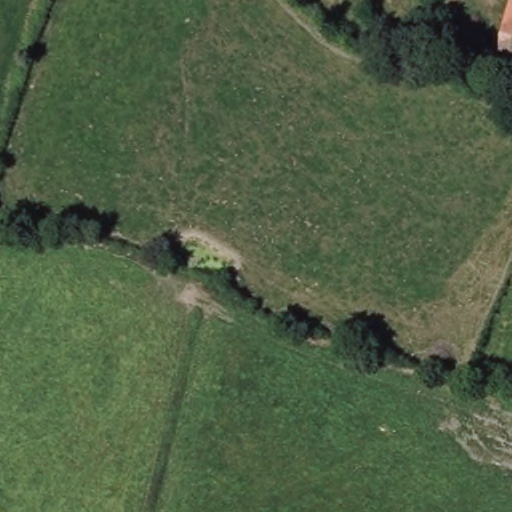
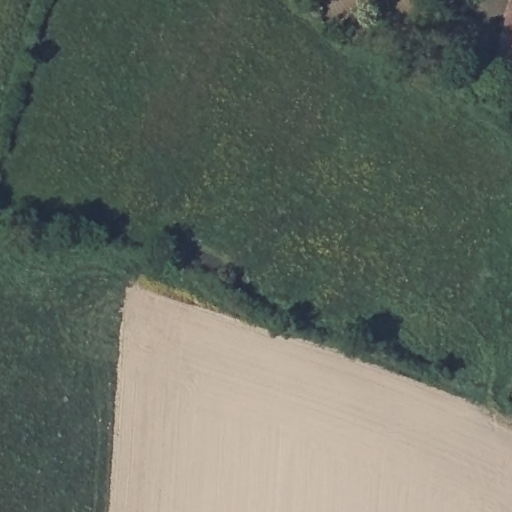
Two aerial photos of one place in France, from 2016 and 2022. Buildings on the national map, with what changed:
unchanged [(508,56),(499,53),(503,36),(508,18),(510,18),(512,18),(512,70),(507,68),(508,56)]

